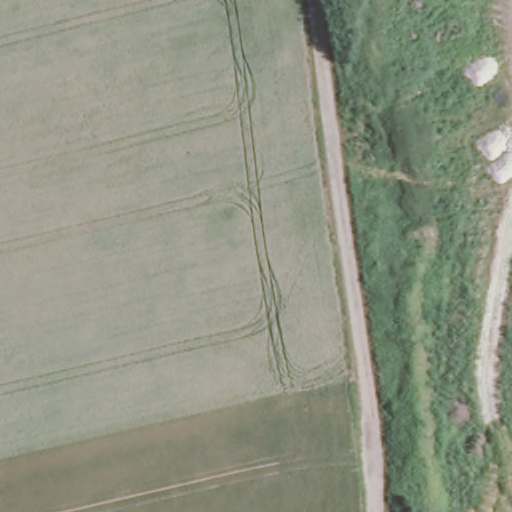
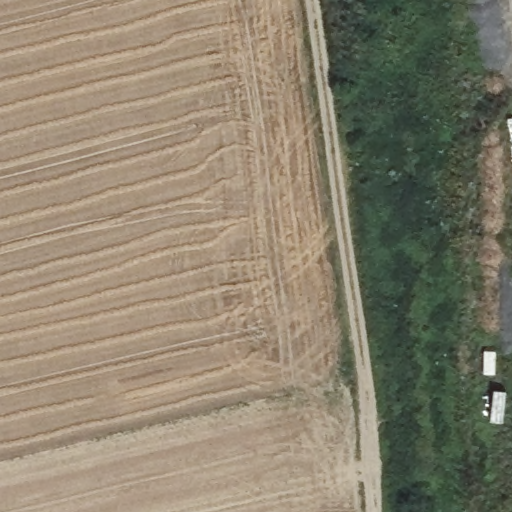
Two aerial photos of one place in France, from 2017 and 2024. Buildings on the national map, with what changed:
[]

